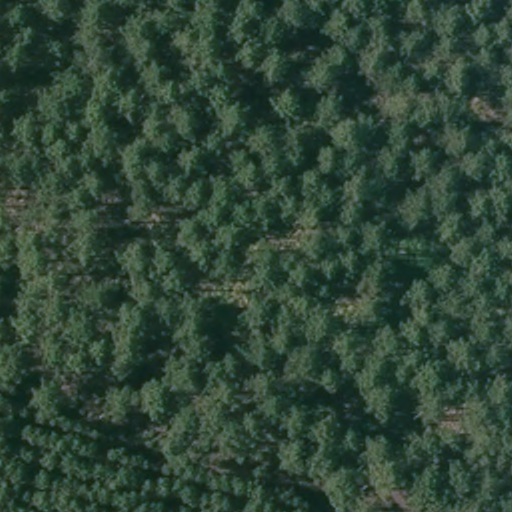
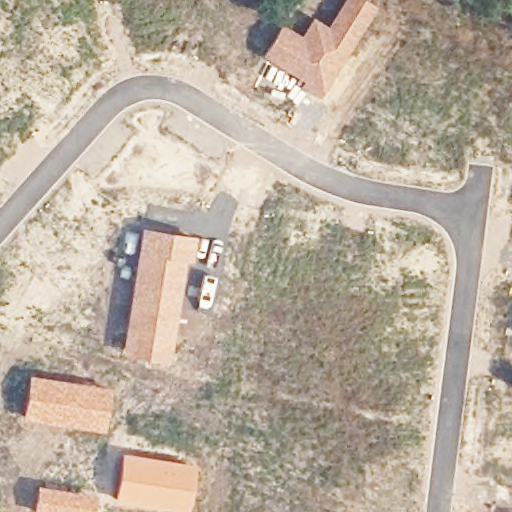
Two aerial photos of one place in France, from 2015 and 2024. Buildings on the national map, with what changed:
new [(301,81),(261,56),(281,24),(300,36),(312,17),(327,26),(342,0),(364,0),(375,7),(318,98),(298,87),(301,81)]
new [(196,235),(191,262),(184,261),(168,362),(121,353),(140,227),(196,235)]
new [(28,375),(112,388),(104,432),(22,420),(28,375)]
new [(195,464),(187,512),(171,512),(112,502),(121,452),(195,464)]
new [(94,512),(32,512),(36,485),(97,495),(94,512)]

